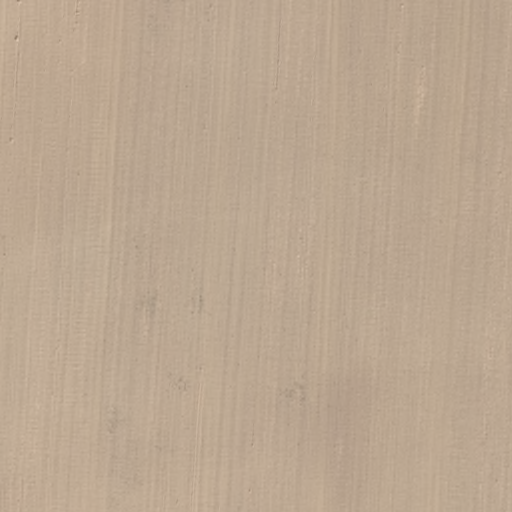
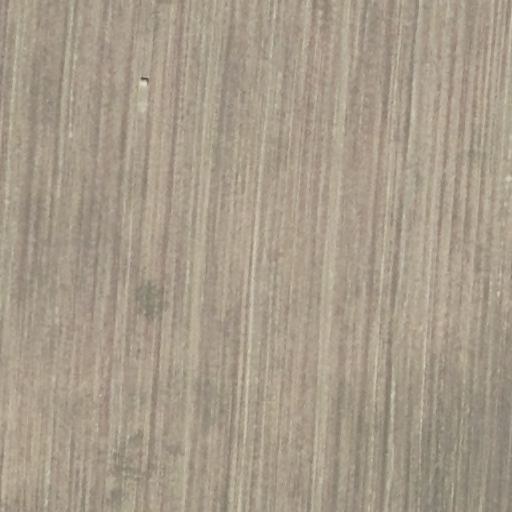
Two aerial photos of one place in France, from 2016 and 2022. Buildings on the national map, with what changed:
[]

